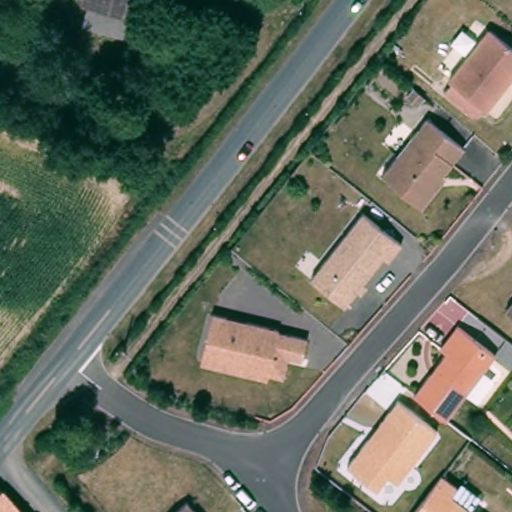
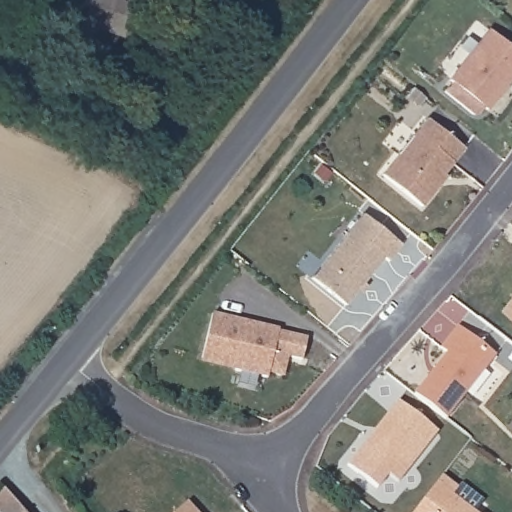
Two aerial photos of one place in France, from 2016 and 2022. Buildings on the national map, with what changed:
unchanged [(80,29),(88,0),(134,0),(122,40),(80,29)]
unchanged [(512,42),(512,74),(486,108),(450,79),(490,26),(512,42)]
unchanged [(465,140),(440,173),(445,177),(425,204),(385,170),(429,112),(465,140)]
unchanged [(405,243),(389,265),(382,260),(347,306),(316,279),(367,214),(405,243)]
unchanged [(510,308),(512,304),(512,309),(510,308)]
unchanged [(272,369),(271,375),(237,367),(205,359),(205,354),(216,310),(230,314),(250,318),(283,326),(282,329),(311,335),(306,357),(291,353),(286,373),(272,369)]
unchanged [(496,351),(449,417),(416,394),(447,351),(440,346),(456,323),(496,351)]
unchanged [(400,395),(440,424),(403,477),(392,469),(382,484),(351,462),(400,395)]
unchanged [(0,505),(0,477),(8,469),(32,497),(45,512),(6,512),(0,505)]
unchanged [(460,486),(453,494),(477,512),(416,512),(445,474),(460,486)]
unchanged [(213,512),(181,512),(197,496),(213,512)]

